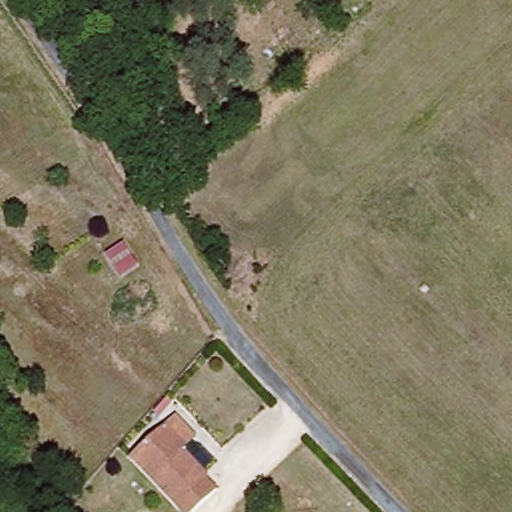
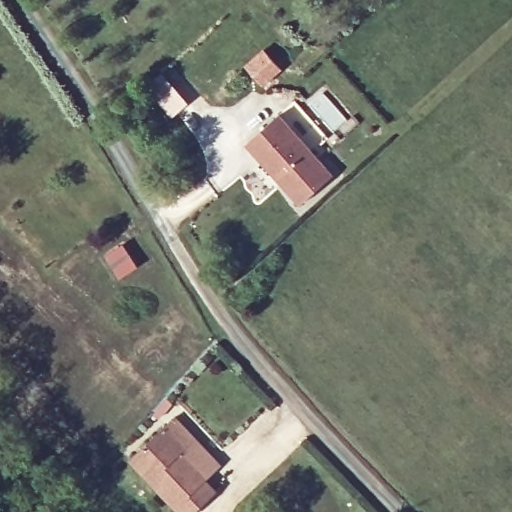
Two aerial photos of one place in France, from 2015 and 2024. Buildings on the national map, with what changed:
new [(161,72),(187,104),(172,115),(146,85),(161,72)]
new [(336,174),(300,206),(244,144),(280,111),(336,174)]
new [(120,244),(136,266),(121,278),(105,256),(120,244)]
unchanged [(217,495),(201,512),(181,512),(130,465),(171,420),(193,441),(183,452),(215,481),(210,487),(217,495)]

